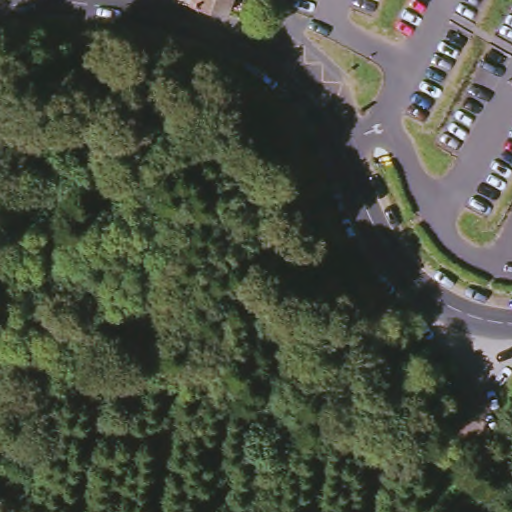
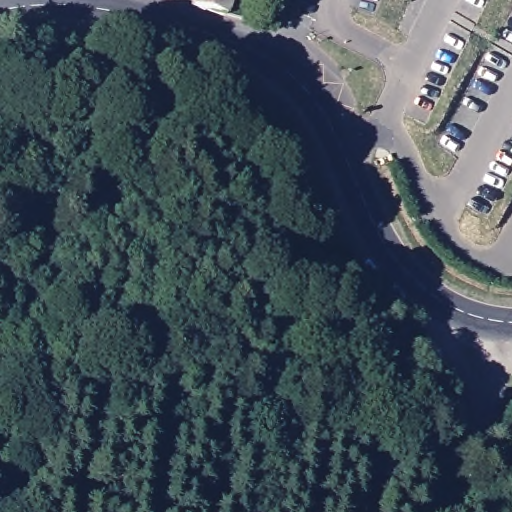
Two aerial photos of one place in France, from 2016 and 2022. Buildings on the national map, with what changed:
unchanged [(198,0),(236,0),(232,12),(198,0)]

